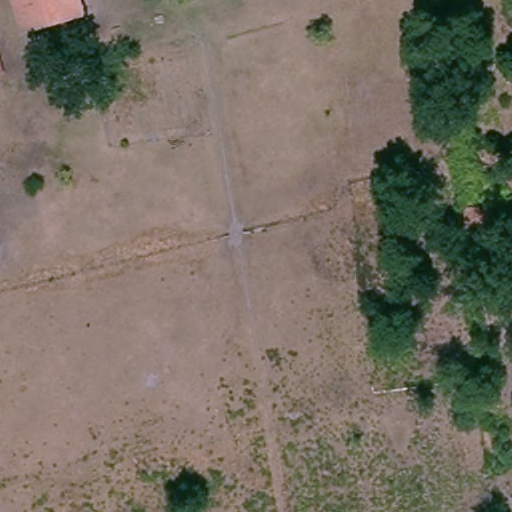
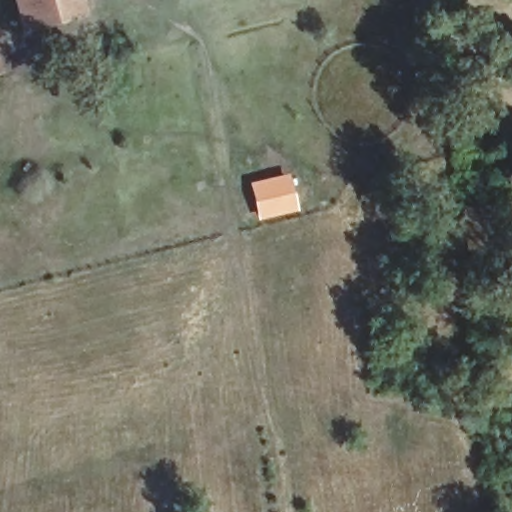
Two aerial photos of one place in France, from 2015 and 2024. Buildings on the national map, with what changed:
unchanged [(22,17),(18,0),(75,0),(76,6),(22,17)]
unchanged [(0,68),(0,64),(1,68),(0,68)]
new [(291,173),(299,211),(258,220),(248,182),(291,173)]

